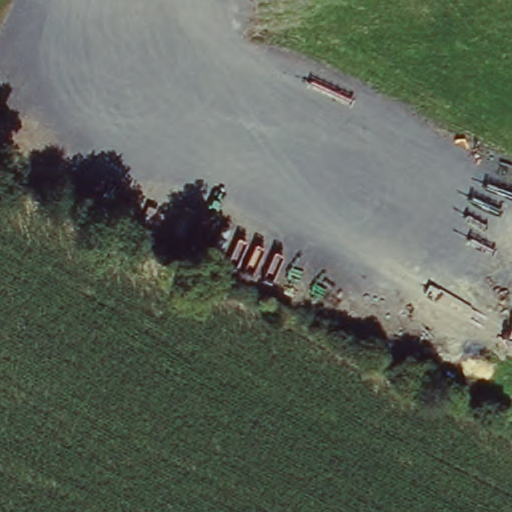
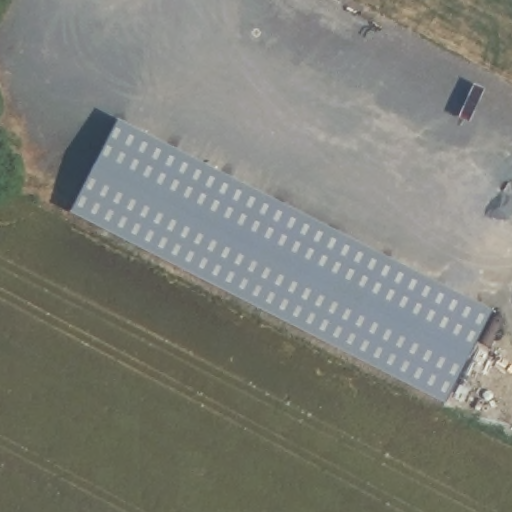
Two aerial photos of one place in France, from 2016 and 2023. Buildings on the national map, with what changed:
new [(493,312),(446,404),(72,212),(118,120),(493,312)]

